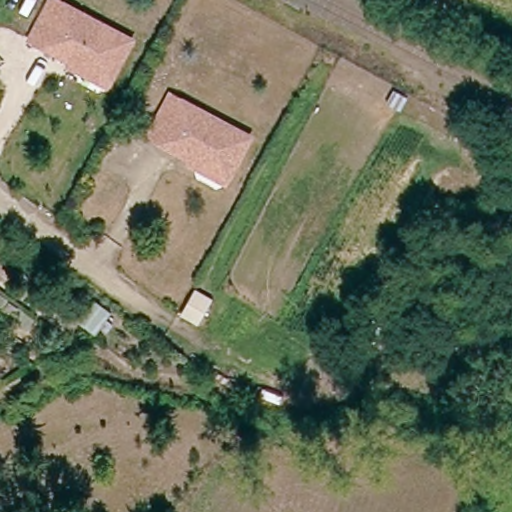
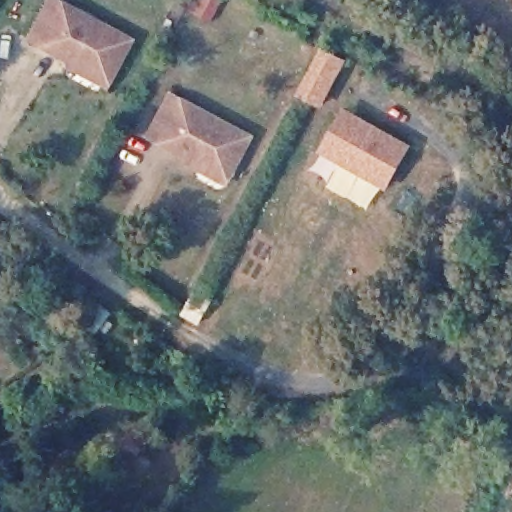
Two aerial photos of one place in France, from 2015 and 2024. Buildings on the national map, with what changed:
unchanged [(40,43),(29,36),(49,0),(64,0),(132,39),(107,81),(40,43)]
new [(295,96),(320,47),(346,60),(321,109),(295,96)]
unchanged [(161,141),(149,135),(172,92),(184,99),(225,122),(201,164),(161,141)]
new [(317,154),(343,108),(411,146),(385,192),(317,154)]
unchanged [(252,136),(228,179),(201,164),(225,122),(252,136)]
unchanged [(196,333),(179,323),(192,299),(209,309),(196,333)]

